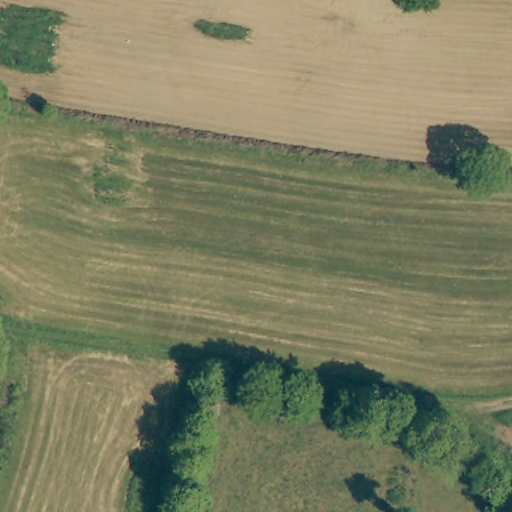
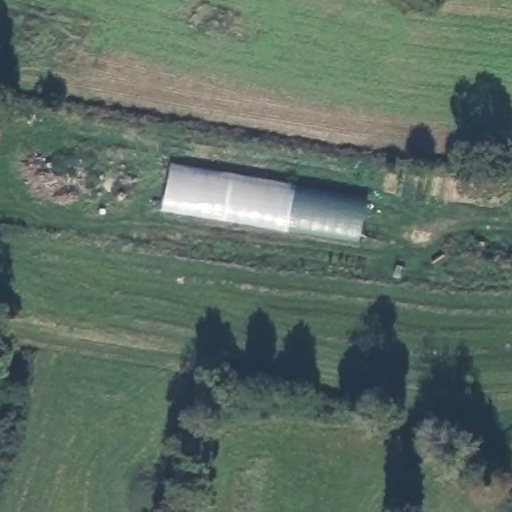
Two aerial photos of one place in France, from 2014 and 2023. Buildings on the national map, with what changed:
new [(169,164),(368,198),(359,244),(158,210),(169,164)]

